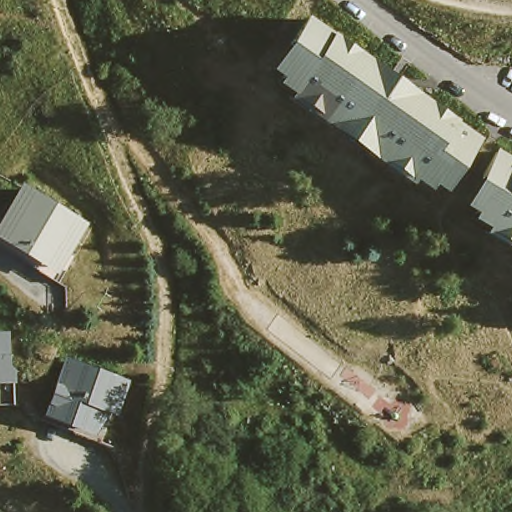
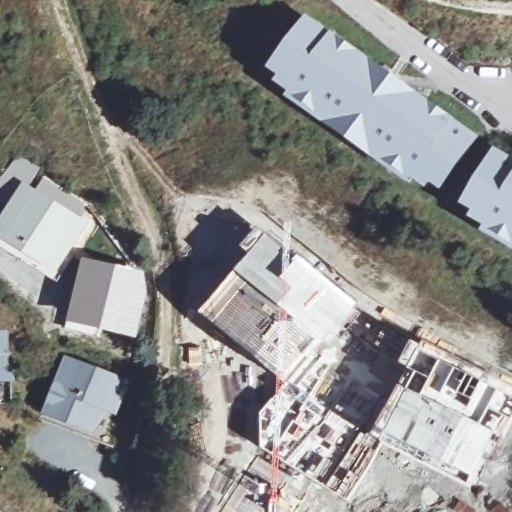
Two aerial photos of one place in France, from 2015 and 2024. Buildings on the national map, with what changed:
unchanged [(379,77),(422,109),(426,104),(486,148),(468,173),(464,171),(449,191),(442,185),(438,190),(424,179),(419,184),(374,149),(376,145),(361,134),(358,138),(305,100),(308,96),(295,87),(299,82),(293,77),(308,57),(304,53),(321,29),(383,73),(379,77)]
unchanged [(486,178),(503,152),(512,157),(512,236),(491,223),(494,219),(479,210),(482,207),(475,202),(489,181),(486,178)]
new [(24,155),(43,169),(28,190),(18,204),(0,191),(0,181),(24,155)]
unchanged [(18,204),(28,190),(81,227),(65,251),(52,268),(0,231),(0,227),(18,204)]
new [(249,254),(241,247),(248,241),(248,242),(250,240),(253,242),(263,232),(288,251),(282,257),(287,268),(298,257),(359,307),(328,346),(234,272),(249,254)]
new [(83,257),(151,272),(138,340),(67,324),(83,257)]
new [(234,272),(328,346),(309,376),(314,380),(319,373),(321,375),(308,396),(296,387),(294,390),(284,383),(199,315),(234,272)]
unchanged [(0,396),(0,333),(5,333),(5,366),(11,371),(11,377),(11,396),(0,396)]
new [(503,427),(498,435),(471,487),(377,438),(404,386),(413,373),(399,364),(411,342),(439,357),(500,388),(512,395),(512,416),(506,428),(503,427)]
unchanged [(44,414),(51,410),(68,360),(126,374),(118,401),(109,435),(79,427),(43,417),(44,414)]
new [(284,383),(294,390),(296,387),(308,396),(346,421),(339,432),(334,428),(315,452),(318,455),(305,474),(259,447),(259,413),(284,383)]
new [(261,507),(258,512),(228,512),(241,493),(261,507)]
new [(512,504),(509,501),(512,496),(512,504)]
new [(509,512),(488,512),(499,502),(509,512)]

